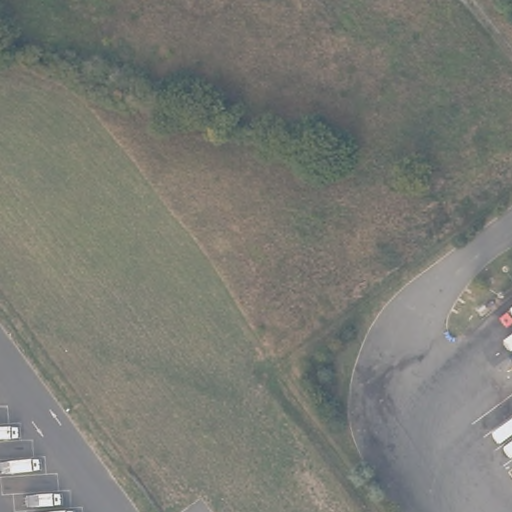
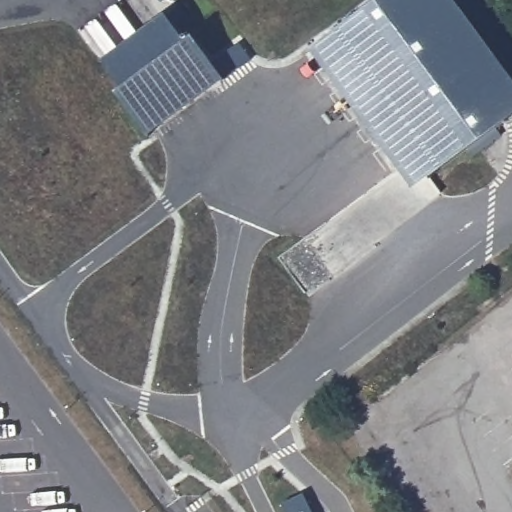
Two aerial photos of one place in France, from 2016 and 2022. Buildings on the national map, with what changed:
new [(451,0),(512,82),(512,117),(413,189),(309,50),(379,0),(451,0)]
new [(147,139),(112,93),(120,88),(102,62),(165,14),(183,41),(191,36),(224,81),(147,139)]

